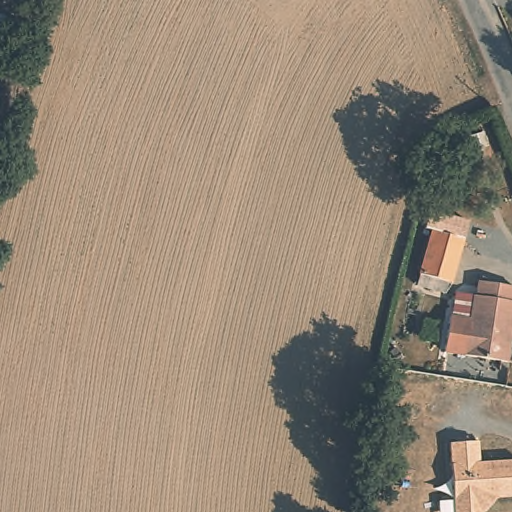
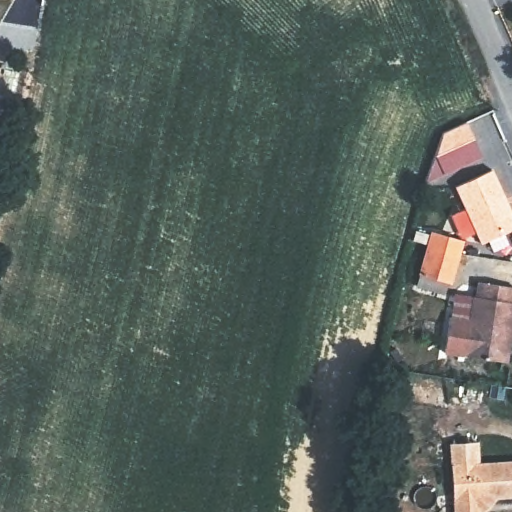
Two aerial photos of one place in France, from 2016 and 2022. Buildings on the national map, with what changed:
new [(441,132),(467,122),(482,157),(425,182),(441,132)]
new [(492,169),(512,214),(512,229),(480,244),(453,186),(492,169)]
unchanged [(416,285),(419,274),(433,229),(463,240),(451,283),(448,283),(445,294),(416,285)]
unchanged [(507,358),(443,348),(449,313),(471,316),(478,277),(512,282),(512,328),(507,358)]
unchanged [(477,441),(477,462),(512,461),(512,497),(495,497),(483,512),(453,512),(449,442),(477,441)]

